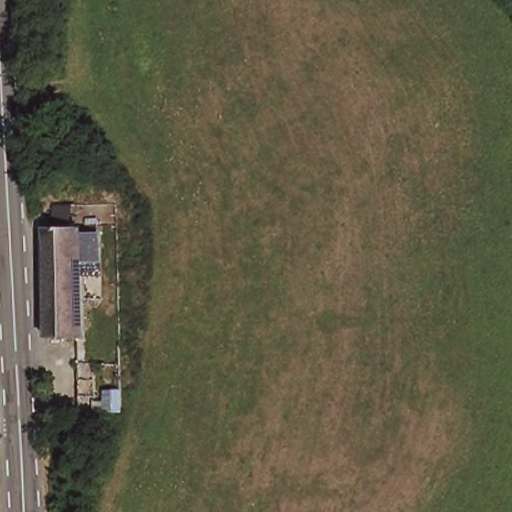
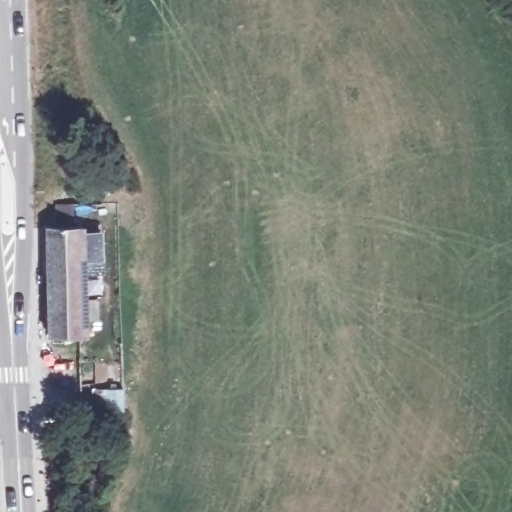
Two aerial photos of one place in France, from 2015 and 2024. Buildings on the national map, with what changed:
unchanged [(40,225),(102,222),(103,250),(85,251),(87,336),(45,338),(40,225)]

